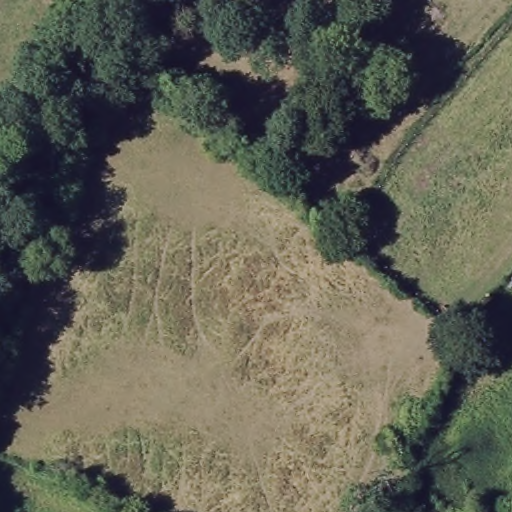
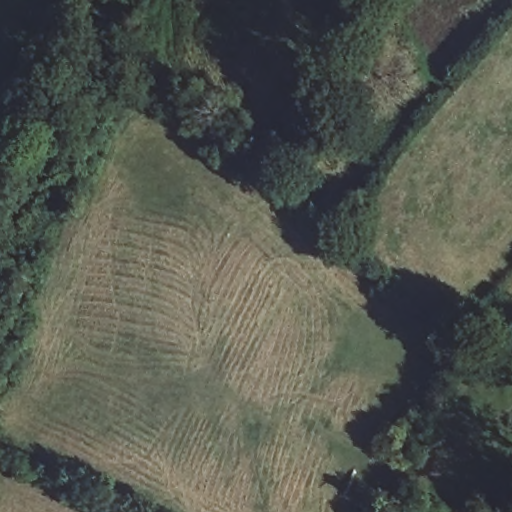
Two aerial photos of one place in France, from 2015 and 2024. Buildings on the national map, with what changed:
[]

